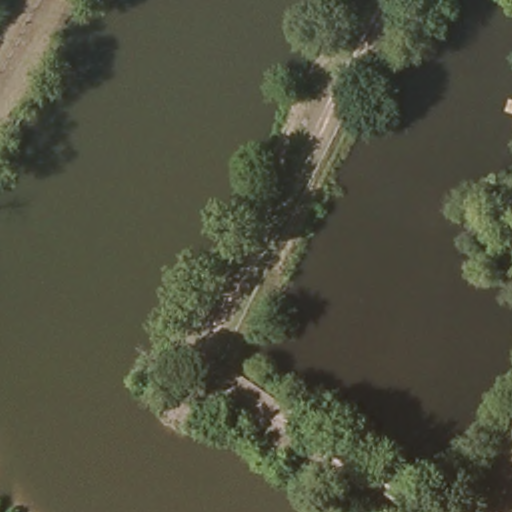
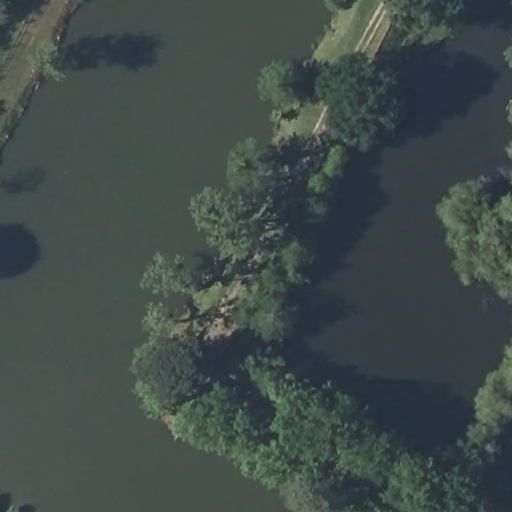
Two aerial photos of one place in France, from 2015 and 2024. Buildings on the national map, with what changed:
[]

